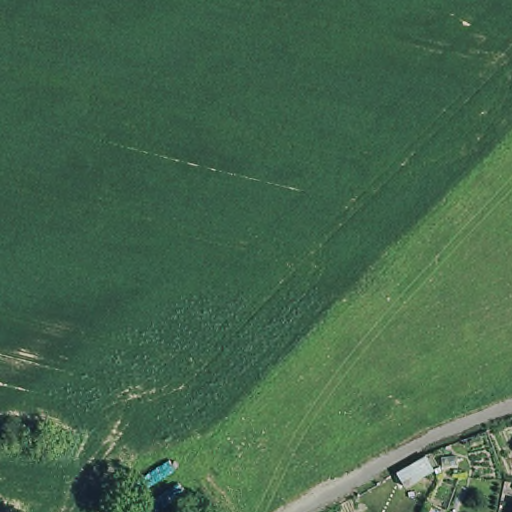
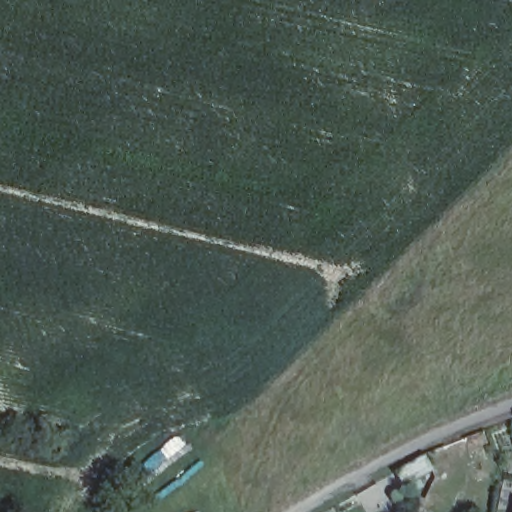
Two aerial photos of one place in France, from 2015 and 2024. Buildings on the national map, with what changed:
unchanged [(407,483),(398,470),(425,453),(435,467),(407,483)]

